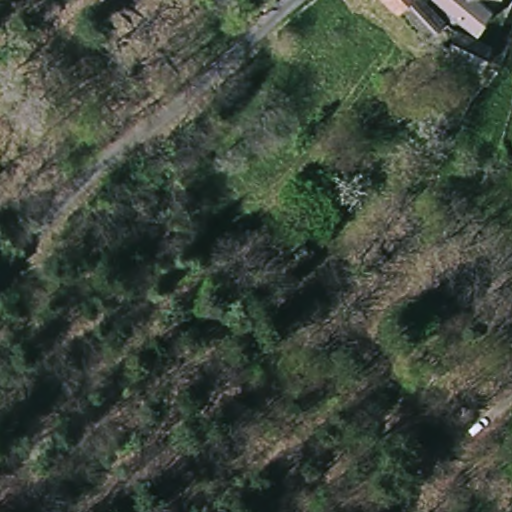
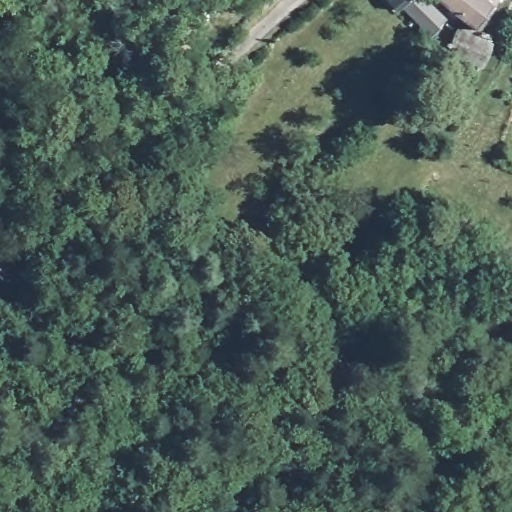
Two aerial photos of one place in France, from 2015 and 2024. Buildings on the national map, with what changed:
unchanged [(393,0),(427,0),(446,15),(432,31),(393,0)]
unchanged [(476,25),(444,0),(496,0),(476,25)]
unchanged [(490,49),(478,64),(450,42),(462,27),(490,49)]

